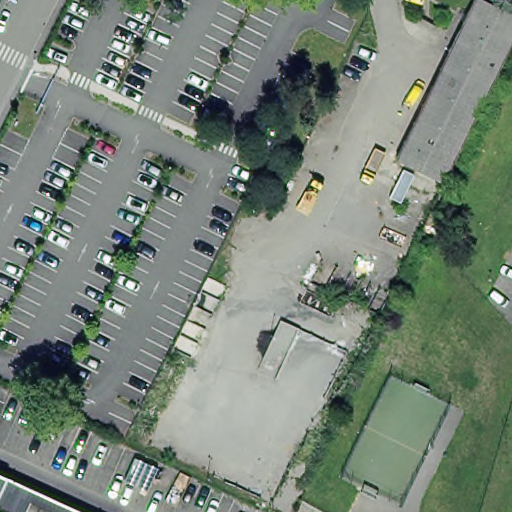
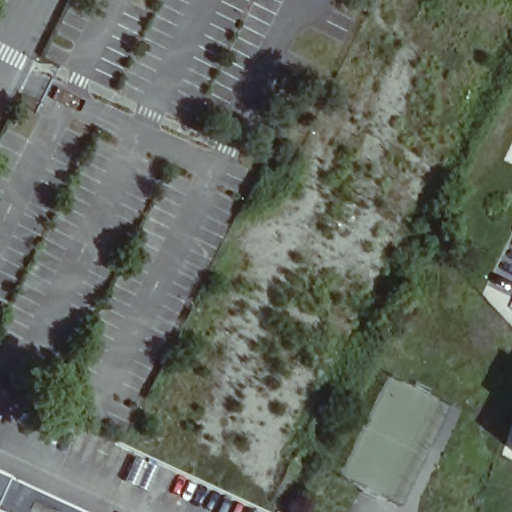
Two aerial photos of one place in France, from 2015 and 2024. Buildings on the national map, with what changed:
demolished [(473,0),(502,0),(512,5),(512,41),(442,182),(394,159),(392,157),(473,0)]
unchanged [(0,512),(0,476),(82,512),(0,512)]

